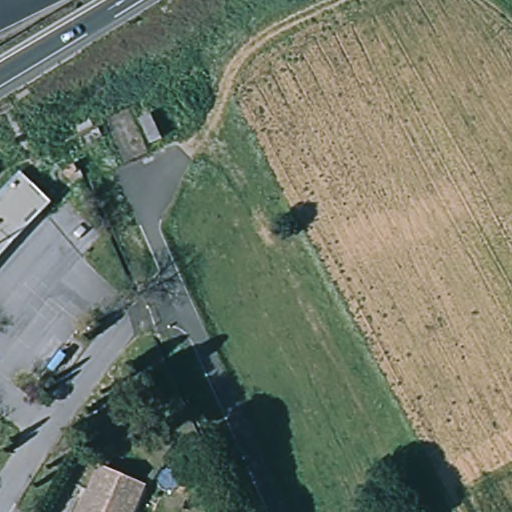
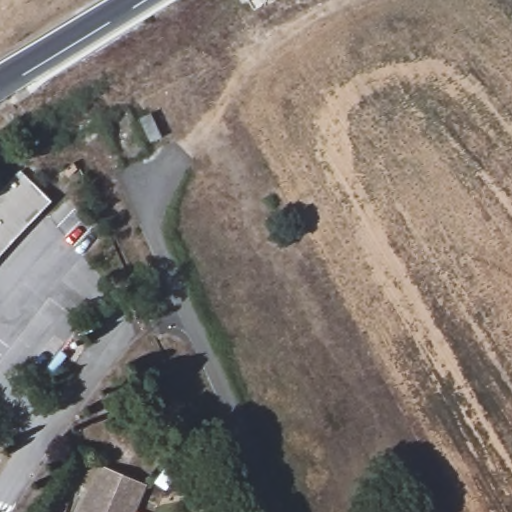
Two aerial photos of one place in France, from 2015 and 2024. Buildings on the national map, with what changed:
unchanged [(161,137),(149,143),(139,119),(150,113),(161,137)]
unchanged [(10,188),(21,177),(50,207),(0,263),(0,199),(10,188)]
unchanged [(81,512),(100,469),(139,486),(146,490),(136,512),(81,512)]

